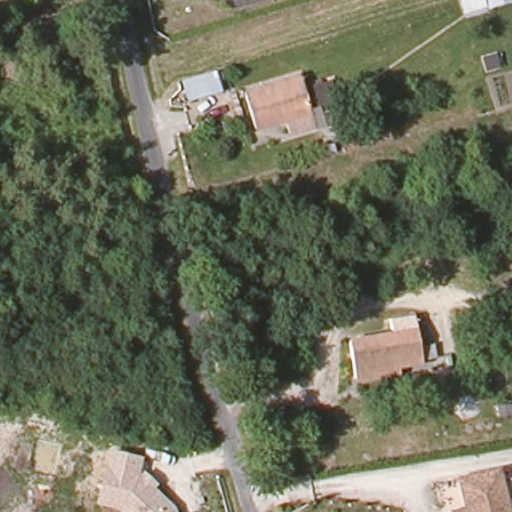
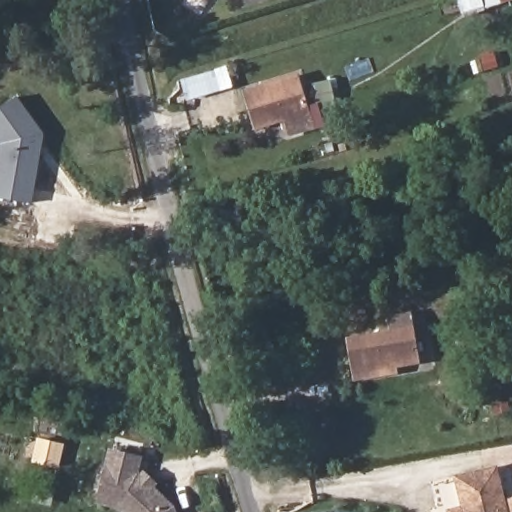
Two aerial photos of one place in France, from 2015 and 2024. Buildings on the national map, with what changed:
unchanged [(459,0),(510,0),(461,12),(459,0)]
unchanged [(293,132),(289,119),(259,127),(248,92),(301,76),(312,113),(316,127),(293,132)]
new [(0,139),(0,110),(19,96),(46,134),(34,202),(0,197),(0,161),(3,144),(0,139)]
unchanged [(421,353),(388,361),(388,367),(356,374),(346,336),(389,327),(385,310),(410,305),(421,353)]
unchanged [(95,506),(107,449),(142,456),(139,473),(143,470),(158,484),(155,488),(176,508),(177,512),(118,512),(115,510),(95,506)]
unchanged [(463,472),(500,465),(509,512),(471,512),(463,472)]

